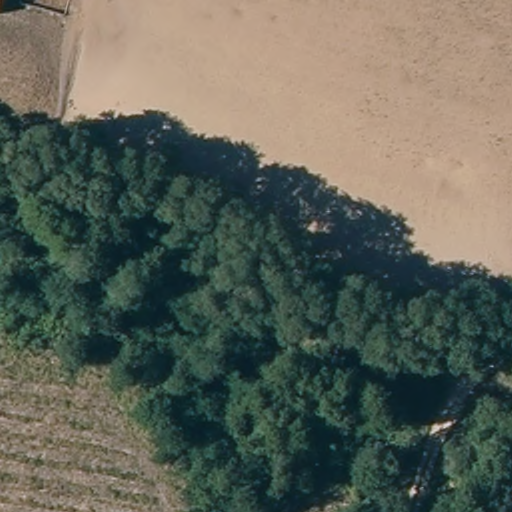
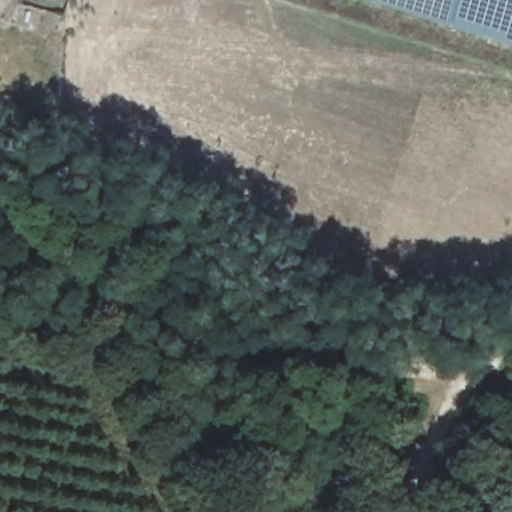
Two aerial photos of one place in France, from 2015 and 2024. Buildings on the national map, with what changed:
new [(475,35),(416,14),(369,0),(512,0),(512,45),(475,35)]

